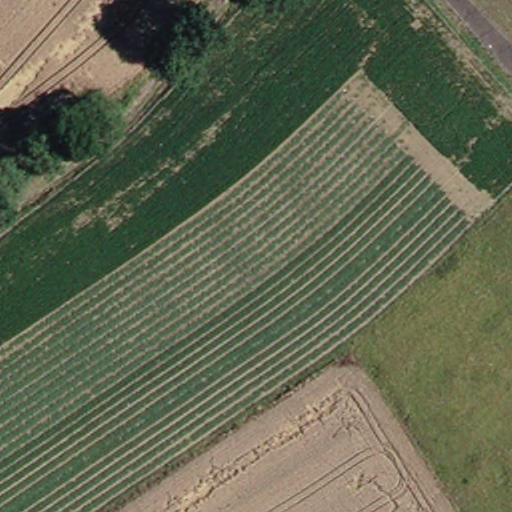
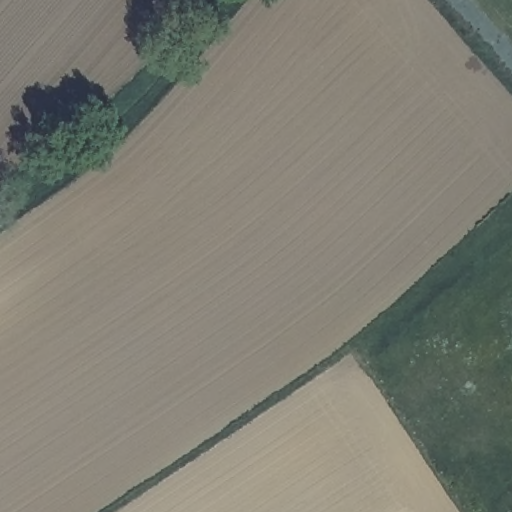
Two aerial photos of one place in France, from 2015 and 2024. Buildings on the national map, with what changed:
[]

